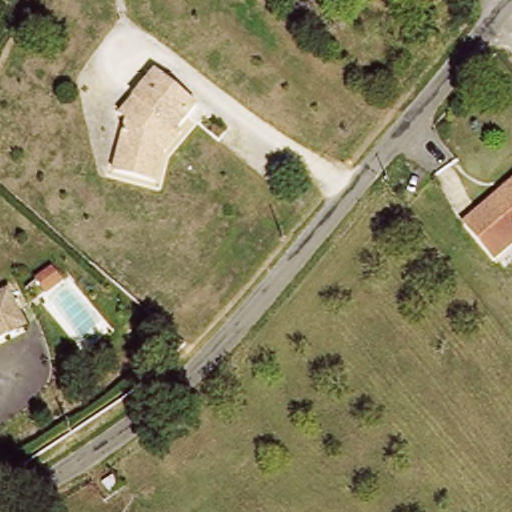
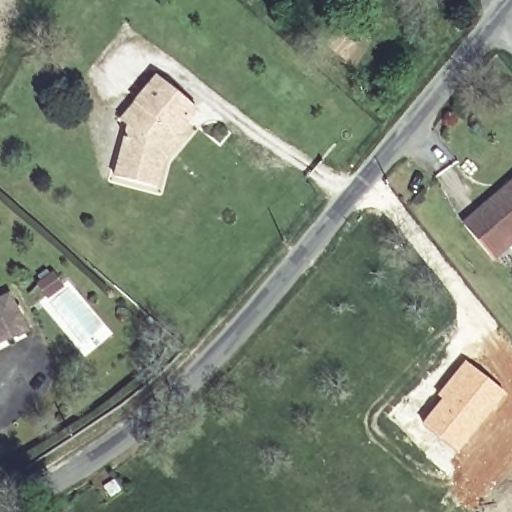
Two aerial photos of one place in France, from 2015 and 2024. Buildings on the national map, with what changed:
unchanged [(168,158),(158,187),(115,175),(132,127),(124,122),(139,102),(160,76),(203,110),(182,134),(186,137),(168,158)]
unchanged [(481,225),(512,192),(512,253),(481,225)]
unchanged [(31,328),(0,343),(0,299),(15,292),(31,328)]
new [(440,400),(435,396),(466,361),(507,395),(458,453),(422,422),(440,400)]

